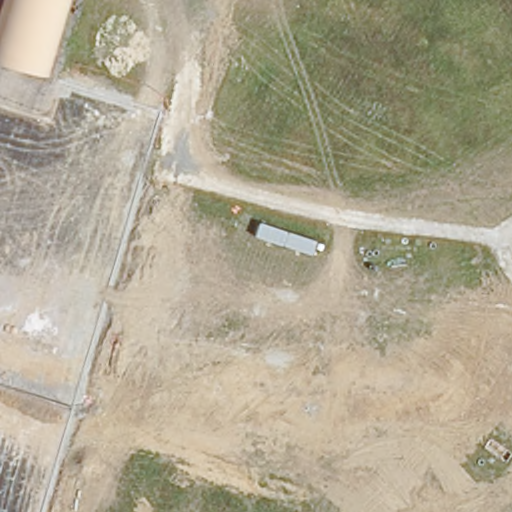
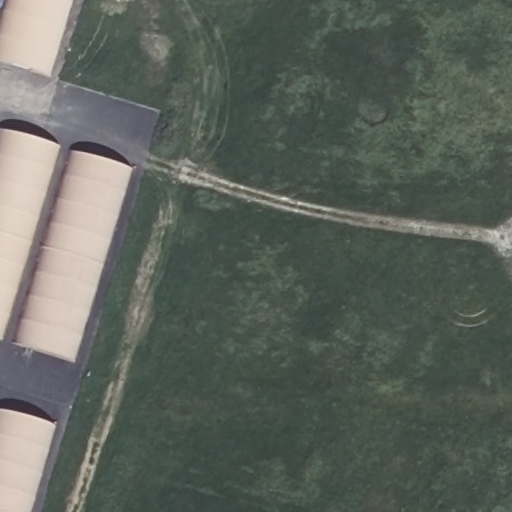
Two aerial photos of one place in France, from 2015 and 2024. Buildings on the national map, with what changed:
unchanged [(0,62),(0,19),(5,0),(66,0),(47,74),(0,62)]
new [(0,323),(0,130),(54,146),(0,323)]
new [(74,362),(11,343),(70,152),(131,170),(74,362)]
new [(30,512),(0,512),(0,411),(55,427),(30,512)]

